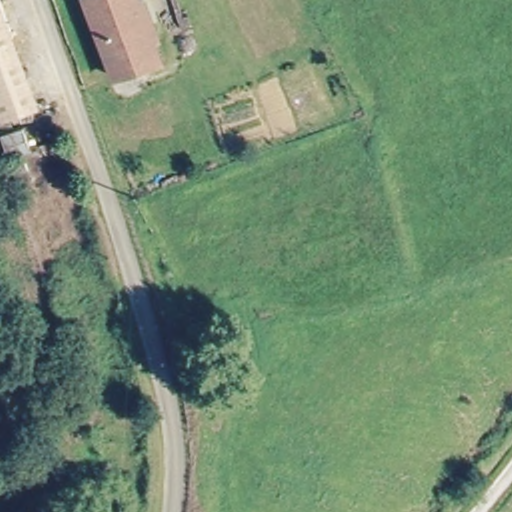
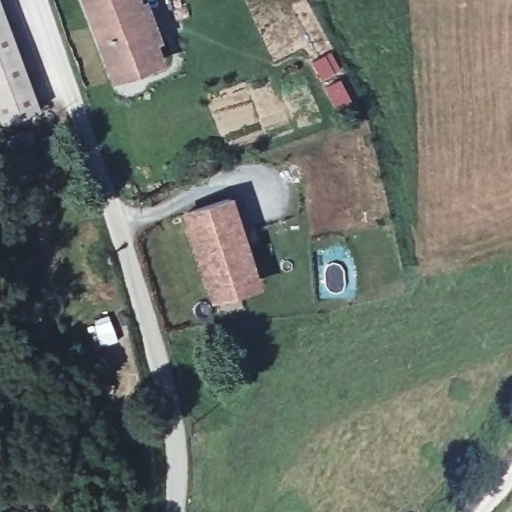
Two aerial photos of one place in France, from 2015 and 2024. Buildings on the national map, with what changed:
unchanged [(0,117),(0,0),(36,104),(0,117)]
unchanged [(111,63),(90,2),(97,0),(143,0),(164,61),(137,71),(116,77),(111,63)]
new [(180,210),(234,194),(263,286),(212,302),(180,210)]

